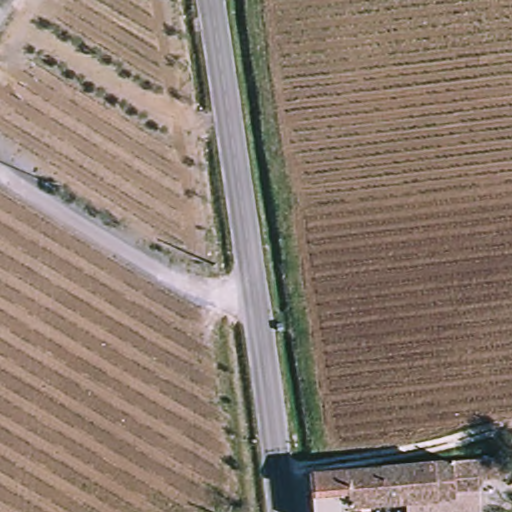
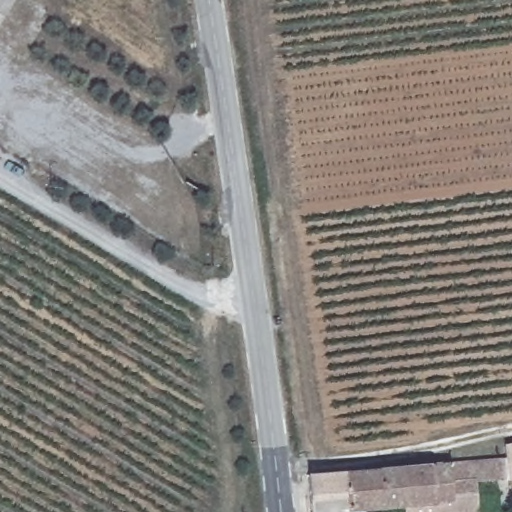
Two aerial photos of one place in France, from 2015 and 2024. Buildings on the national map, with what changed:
unchanged [(13,0),(0,22),(0,0),(13,0)]
unchanged [(404,505),(379,508),(377,471),(437,465),(471,462),(503,460),(504,478),(473,480),(477,511),(477,512),(405,512),(404,505)]
unchanged [(366,472),(377,471),(379,508),(340,512),(311,512),(307,477),(366,472)]

